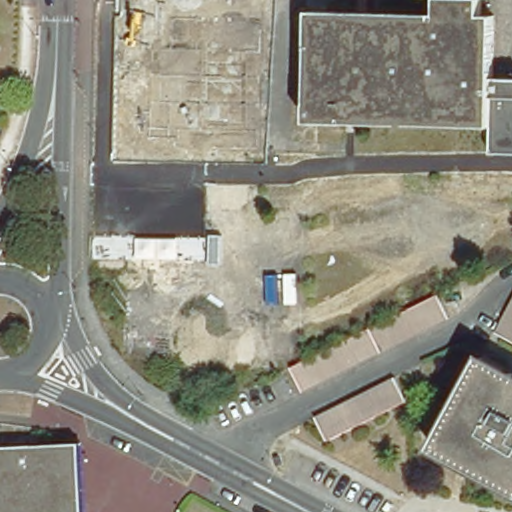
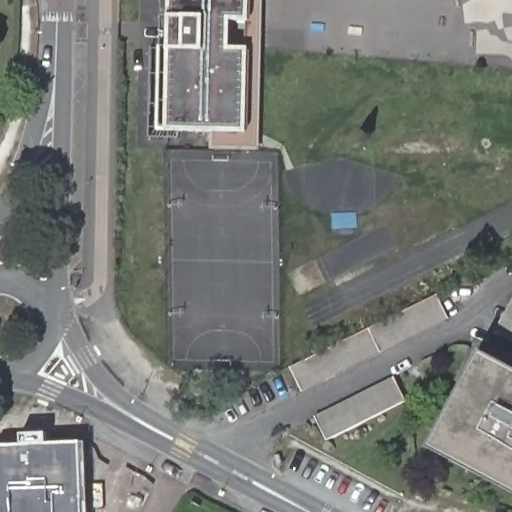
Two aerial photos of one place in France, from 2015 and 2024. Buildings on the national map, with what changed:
new [(211,151),(210,132),(166,131),(161,131),(161,49),(169,51),(170,16),(170,0),(263,0),(260,151),(211,151)]
demolished [(493,16),(492,79),(512,79),(512,154),(490,154),(491,127),(307,122),(310,12),(437,14),(437,0),(481,0),(480,15),(493,16)]
demolished [(125,10),(232,10),(231,83),(125,81),(125,10)]
unchanged [(300,365),(417,307),(437,297),(450,320),(302,391),(291,369),(300,365)]
unchanged [(512,303),(512,344),(495,333),(512,303)]
unchanged [(478,358),(512,377),(512,499),(427,453),(478,358)]
unchanged [(327,442),(316,420),(395,381),(406,402),(327,442)]
unchanged [(79,446),(81,512),(0,512),(0,448),(79,446)]

